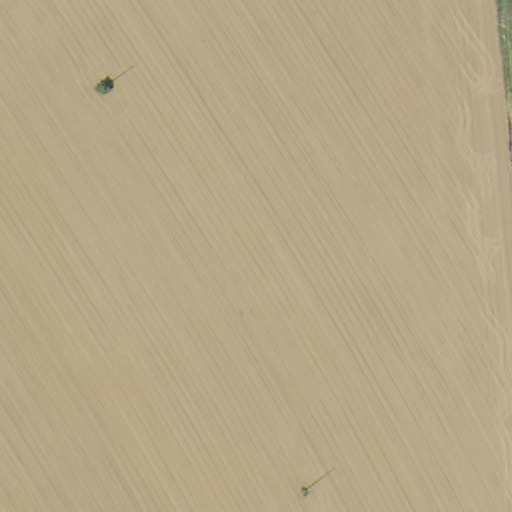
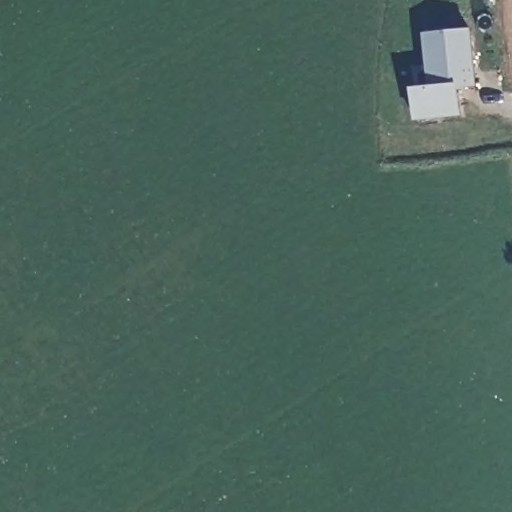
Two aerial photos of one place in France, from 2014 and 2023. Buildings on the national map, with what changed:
new [(460,90),(463,117),(415,121),(412,89),(430,87),(424,33),(472,28),(478,88),(460,90)]

